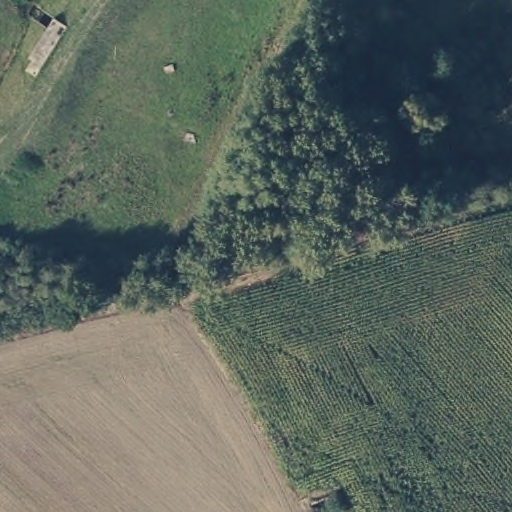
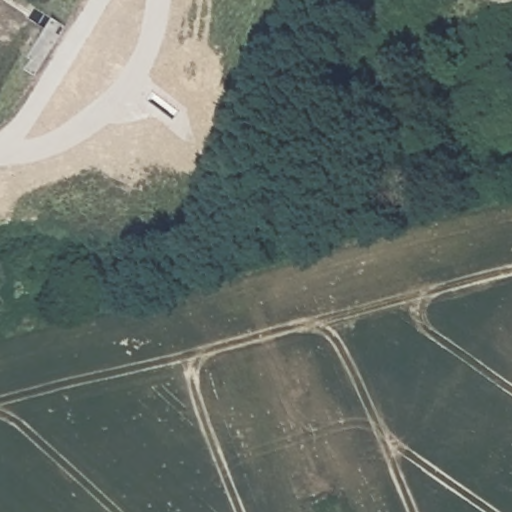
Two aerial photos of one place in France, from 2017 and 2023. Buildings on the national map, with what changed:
unchanged [(57,22),(68,27),(39,77),(30,72),(35,60),(32,58),(57,22)]

